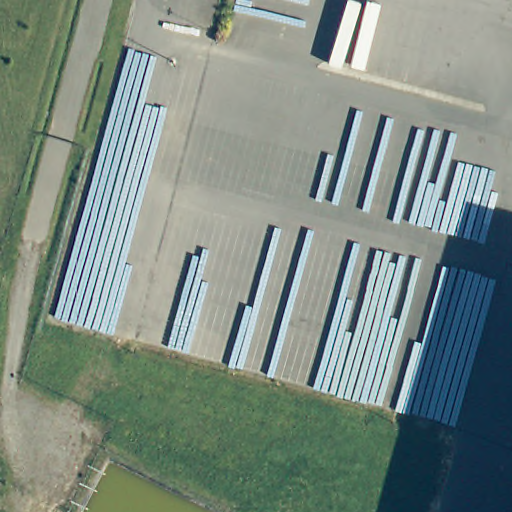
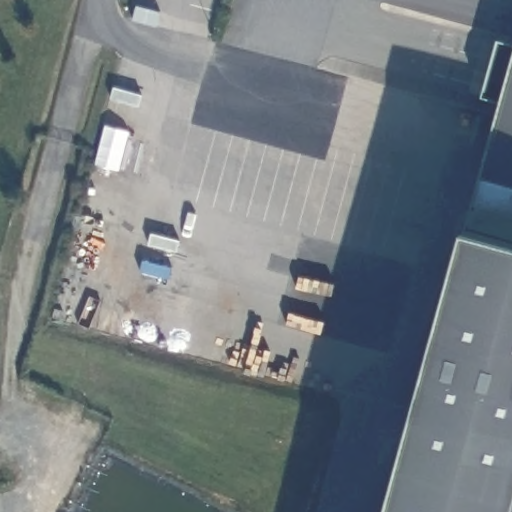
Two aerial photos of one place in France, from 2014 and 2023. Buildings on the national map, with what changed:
new [(468,229),(500,102),(482,97),(497,39),(512,43),(512,512),(390,512),(468,229)]

